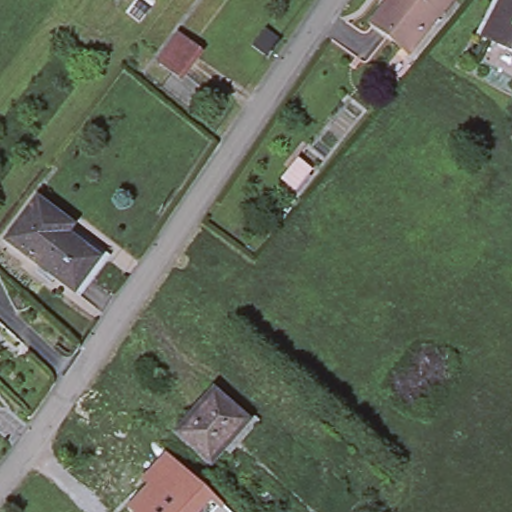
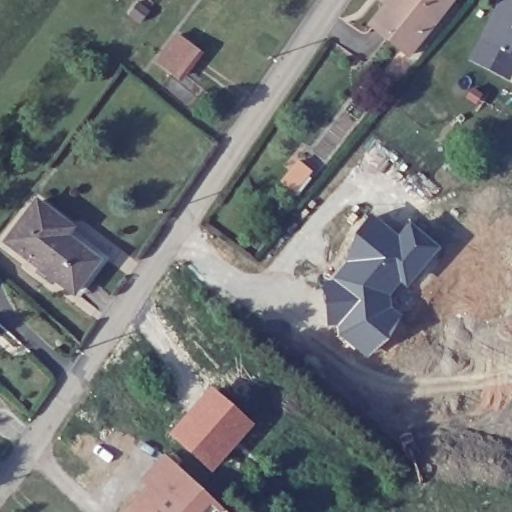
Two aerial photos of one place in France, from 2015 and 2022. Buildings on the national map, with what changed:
unchanged [(368,19),(384,0),(443,0),(417,31),(403,47),(396,42),(368,19)]
unchanged [(512,0),(512,53),(482,38),(502,0),(512,0)]
unchanged [(176,36),(200,52),(180,79),(157,62),(176,36)]
new [(507,79),(470,60),(482,38),(512,54),(512,71),(507,79)]
new [(313,172),(293,197),(278,186),(297,160),(313,172)]
unchanged [(39,195),(67,227),(60,234),(88,267),(59,292),(2,227),(39,195)]
new [(440,247),(405,291),(400,286),(390,298),(392,311),(401,318),(368,359),(338,335),(338,328),(326,327),(326,283),(335,281),(348,262),(356,232),(372,215),(400,235),(411,222),(440,247)]
unchanged [(248,423),(210,467),(173,435),(212,391),(248,423)]
unchanged [(224,512),(125,512),(147,488),(139,482),(164,455),(224,512)]

